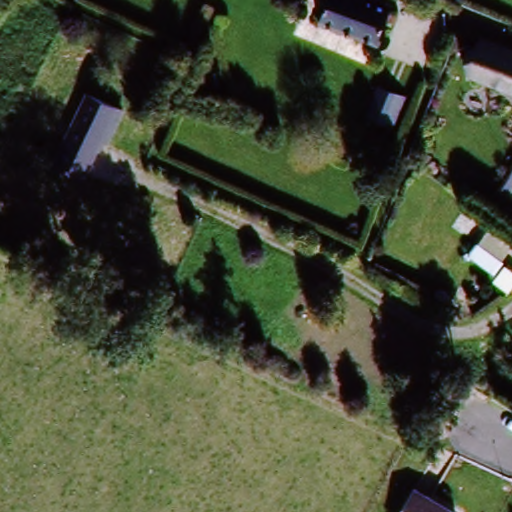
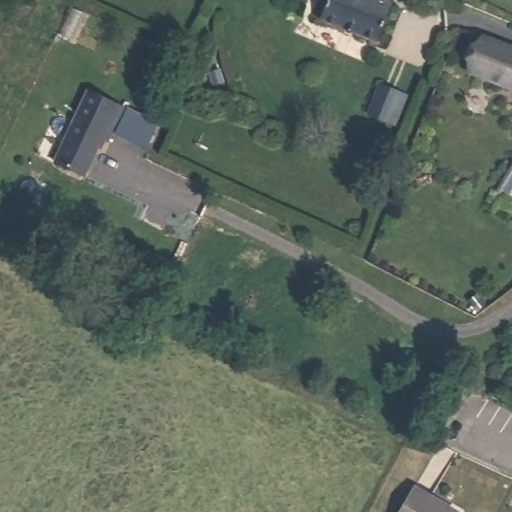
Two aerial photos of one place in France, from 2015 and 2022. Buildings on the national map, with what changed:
unchanged [(332,0),(367,0),(391,10),(375,48),(321,26),(332,0)]
unchanged [(461,75),(474,40),(512,53),(512,95),(461,75)]
unchanged [(82,89),(119,107),(106,134),(101,132),(79,177),(48,163),(82,89)]
unchanged [(512,176),(512,204),(500,197),(512,176)]
unchanged [(413,490),(453,510),(452,512),(401,512),(413,490)]

